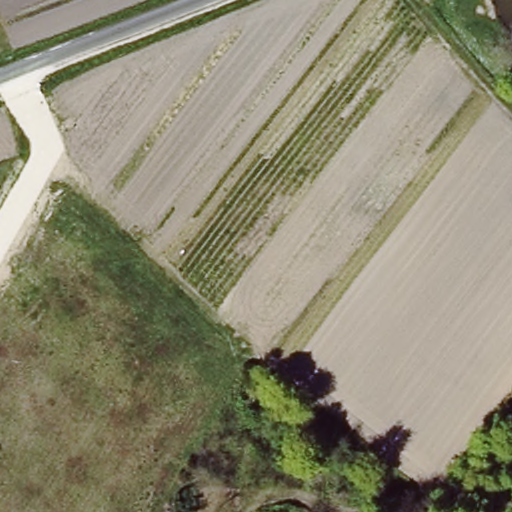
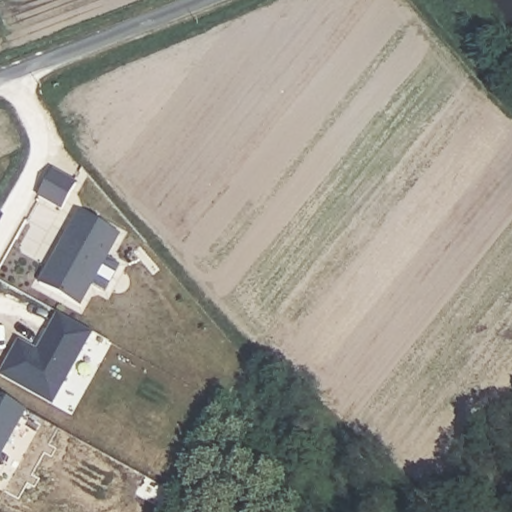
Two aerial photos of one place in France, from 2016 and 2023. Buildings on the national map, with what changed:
new [(63,211),(37,199),(51,170),(78,184),(63,211)]
new [(108,259),(120,265),(104,292),(93,287),(81,309),(38,285),(77,212),(120,235),(108,259)]
new [(3,374),(22,341),(40,352),(63,314),(95,333),(53,404),(3,374)]
new [(27,408),(0,454),(0,392),(27,408)]

